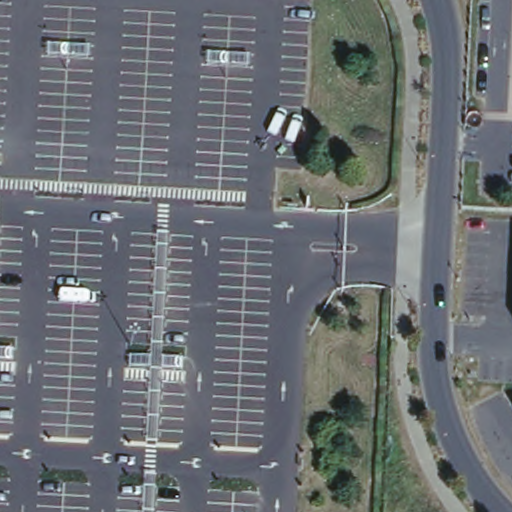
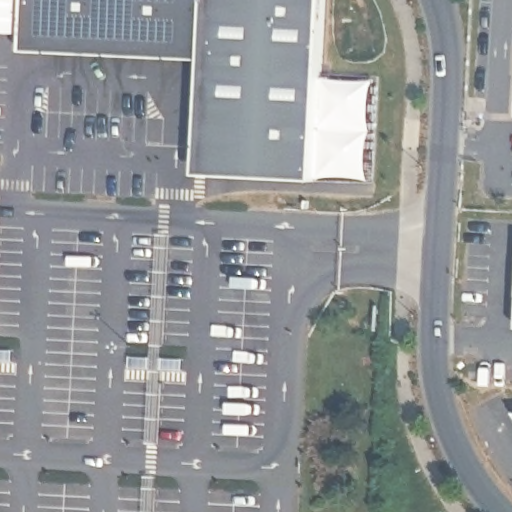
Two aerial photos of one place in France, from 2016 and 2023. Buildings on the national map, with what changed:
new [(208,176),(213,79),(36,70),(39,0),(340,0),(331,182),(208,176)]

